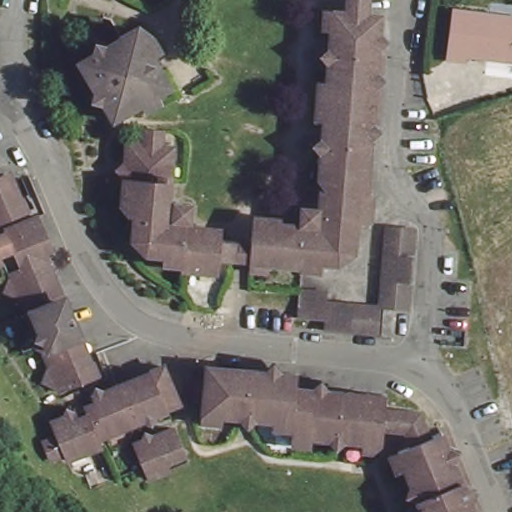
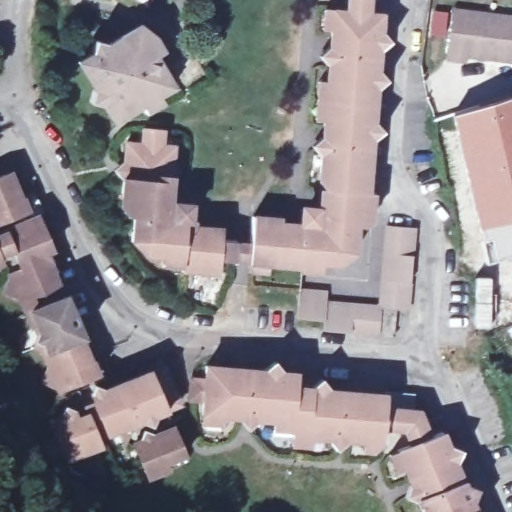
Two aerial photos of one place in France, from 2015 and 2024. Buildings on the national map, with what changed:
unchanged [(366,189),(373,190),(373,212),(357,212),(351,260),(337,259),(335,266),(305,264),(302,270),(248,264),(254,214),(301,218),(304,205),(323,206),(327,171),(316,169),(321,120),(313,119),(316,86),(323,85),(329,29),(325,28),(327,10),(341,9),(341,0),(369,0),(368,14),(384,16),(366,189)]
unchanged [(450,10),(512,16),(512,54),(447,47),(450,10)]
unchanged [(164,65),(148,74),(160,94),(142,106),(137,98),(112,114),(77,58),(137,22),(164,65)]
new [(512,221),(476,229),(450,113),(512,95),(512,221)]
unchanged [(165,148),(176,149),(172,202),(195,204),(193,224),(221,229),(217,278),(180,273),(181,262),(149,260),(149,247),(133,246),(137,205),(123,202),(128,147),(141,148),(143,132),(165,135),(165,148)]
unchanged [(7,198),(12,196),(18,212),(0,219),(0,180),(7,198)]
unchanged [(37,232),(33,233),(42,255),(50,274),(47,276),(83,360),(89,358),(95,374),(62,387),(0,243),(0,228),(30,217),(32,220),(37,232)]
new [(512,254),(483,261),(476,229),(512,221),(512,254)]
unchanged [(419,231),(411,308),(399,306),(379,303),(389,227),(419,231)]
new [(473,275),(490,275),(489,329),(473,329),(473,275)]
unchanged [(324,326),(297,322),(301,290),(332,294),(332,299),(379,303),(374,344),(354,342),(324,339),(324,326)]
unchanged [(394,346),(381,345),(385,313),(398,314),(394,346)]
unchanged [(210,360),(290,369),(291,373),(317,375),(317,382),(382,389),(380,404),(378,423),(375,444),(366,444),(365,438),(309,431),(308,436),(297,435),(296,428),(275,428),(274,418),(223,413),(222,421),(204,421),(207,377),(210,360)]
unchanged [(157,364),(161,374),(170,407),(92,439),(93,444),(60,457),(57,453),(41,461),(35,443),(50,437),(45,423),(78,409),(75,397),(102,386),(157,364)]
unchanged [(415,442),(408,426),(378,423),(380,404),(421,410),(432,435),(415,442)]
unchanged [(179,454),(161,462),(162,466),(143,474),(130,441),(169,426),(179,454)]
unchanged [(406,493),(411,480),(404,465),(397,467),(391,454),(415,442),(432,435),(442,430),(463,479),(477,512),(423,512),(417,498),(406,493)]

